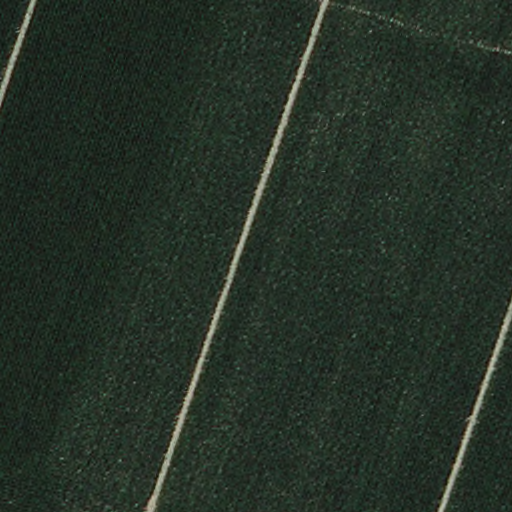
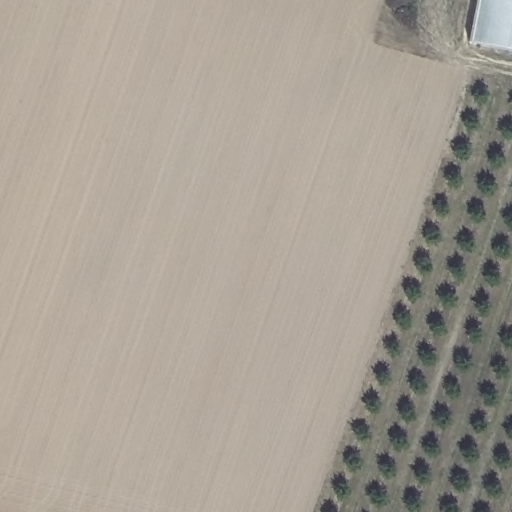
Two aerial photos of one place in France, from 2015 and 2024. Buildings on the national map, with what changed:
new [(478,0),(512,0),(512,52),(470,45),(478,0)]

